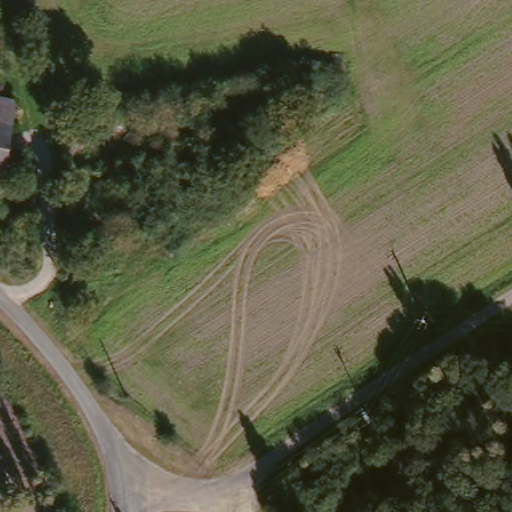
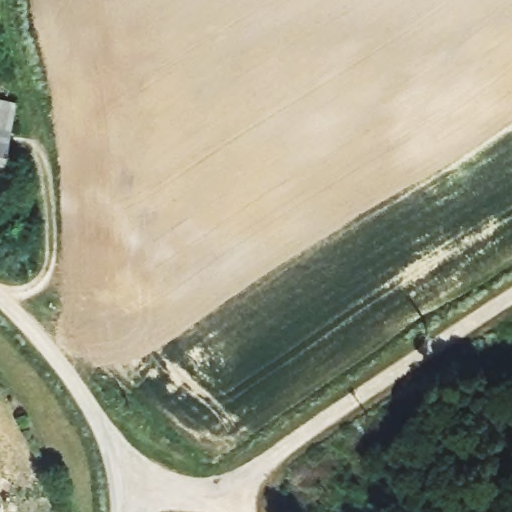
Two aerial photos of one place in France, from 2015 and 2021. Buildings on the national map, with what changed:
unchanged [(7,131),(0,129),(0,98),(14,101),(7,131)]
unchanged [(0,172),(0,129),(7,131),(0,172)]

